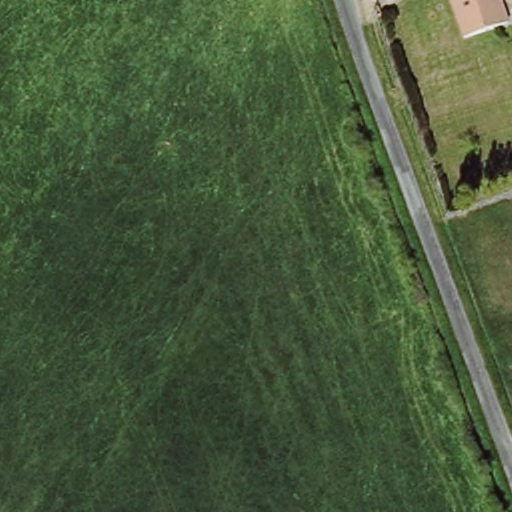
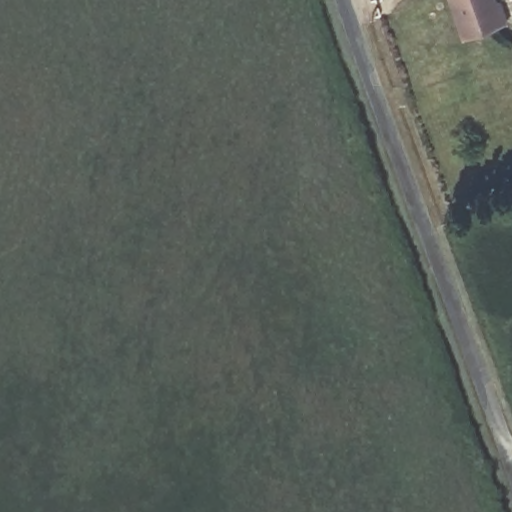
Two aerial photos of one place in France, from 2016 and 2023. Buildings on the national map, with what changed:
unchanged [(456,0),(500,0),(502,6),(507,5),(512,19),(512,31),(472,45),(456,0)]

